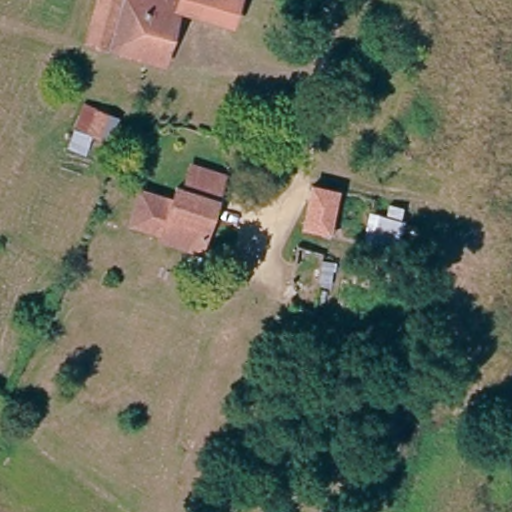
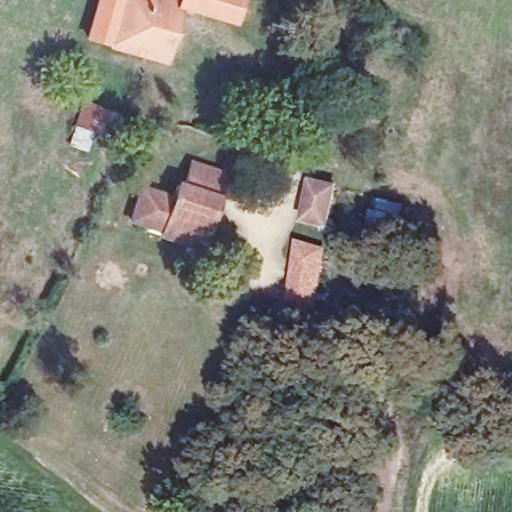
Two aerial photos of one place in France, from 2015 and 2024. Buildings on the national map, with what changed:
unchanged [(114,45),(85,37),(96,0),(124,0),(114,45)]
unchanged [(233,12),(183,2),(168,57),(120,47),(114,45),(124,0),(235,0),(233,12)]
unchanged [(82,97),(123,112),(115,140),(93,135),(88,154),(68,146),(82,97)]
unchanged [(159,230),(129,220),(140,189),(169,199),(172,190),(180,190),(189,165),(208,172),(226,179),(219,200),(202,245),(159,230)]
unchanged [(338,185),(328,227),(308,222),(320,180),(338,185)]
unchanged [(404,217),(395,247),(360,239),(368,207),(404,217)]
new [(328,247),(313,309),(285,305),(297,242),(328,247)]

